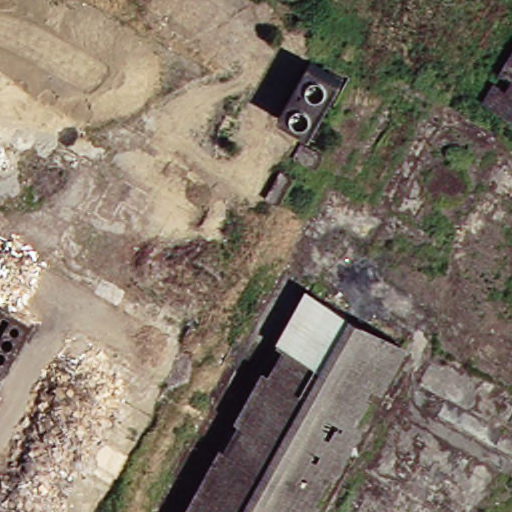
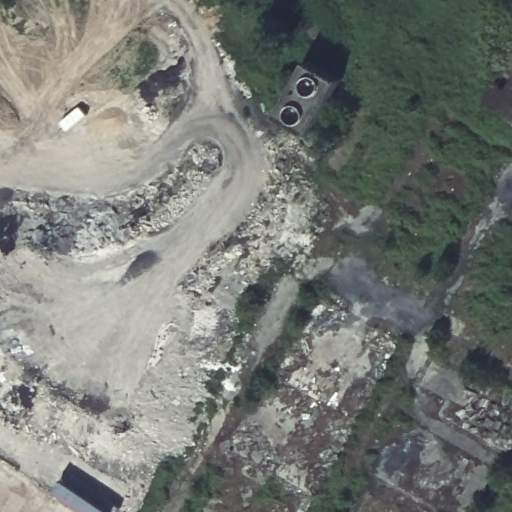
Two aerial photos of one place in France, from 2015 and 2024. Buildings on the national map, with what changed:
unchanged [(512,51),(512,125),(479,105),(512,51)]
unchanged [(278,108),(305,61),(340,80),(313,127),(310,135),(274,115),(278,108)]
unchanged [(297,143),(319,156),(312,168),(290,156),(297,143)]
demolished [(401,345),(308,512),(188,512),(310,294),(401,345)]
demolished [(0,308),(24,322),(0,364),(0,308)]

